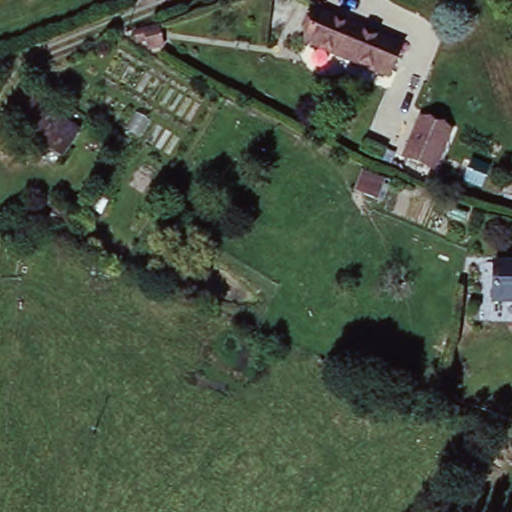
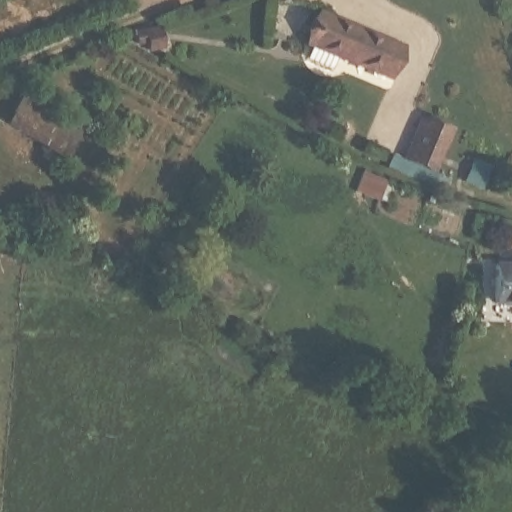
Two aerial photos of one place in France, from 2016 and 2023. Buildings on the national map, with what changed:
unchanged [(405,44),(390,72),(308,38),(320,9),(405,44)]
unchanged [(159,24),(168,48),(150,55),(147,46),(137,47),(132,32),(159,24)]
unchanged [(80,121),(67,149),(9,122),(21,94),(80,121)]
unchanged [(404,172),(411,159),(428,119),(457,131),(439,172),(433,169),(427,182),(404,172)]
unchanged [(62,230),(48,224),(54,212),(79,222),(73,236),(84,238),(79,253),(56,244),(62,230)]
unchanged [(512,262),(512,299),(493,298),(495,262),(512,262)]

